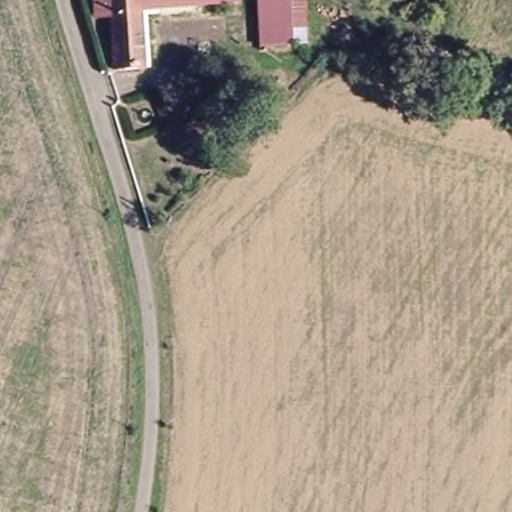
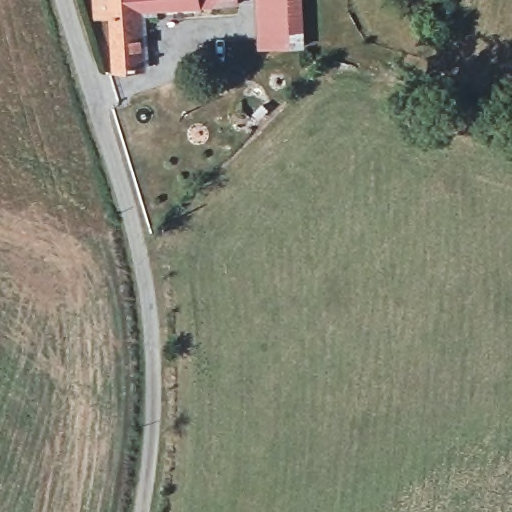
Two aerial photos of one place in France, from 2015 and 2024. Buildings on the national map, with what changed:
unchanged [(214,9),(137,10),(138,65),(109,66),(108,17),(95,17),(94,0),(233,0),(233,9),(214,9)]
unchanged [(254,49),(253,0),(298,0),(301,47),(254,49)]

